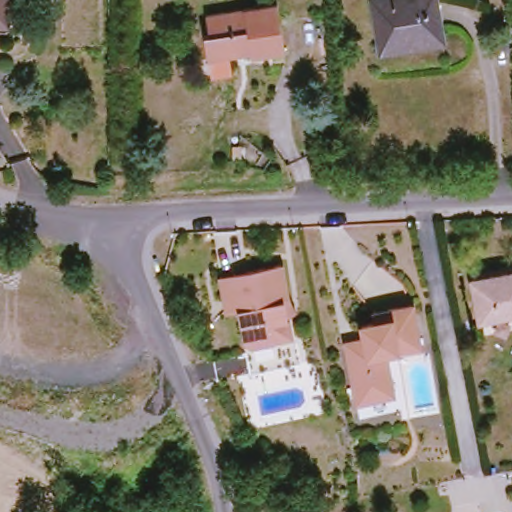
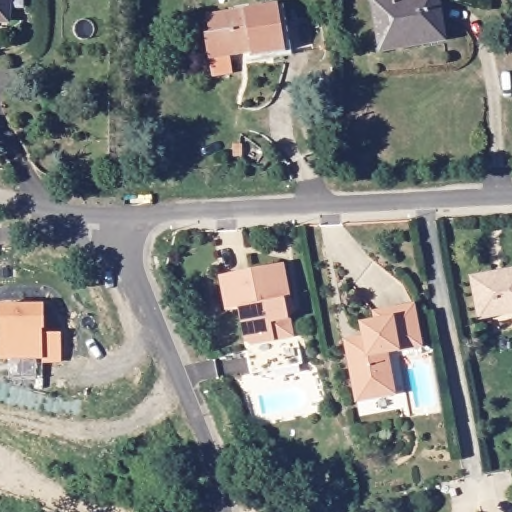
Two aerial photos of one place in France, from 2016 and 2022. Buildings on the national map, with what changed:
unchanged [(0,31),(0,0),(10,0),(9,31),(0,31)]
unchanged [(427,46),(426,39),(380,45),(373,1),(376,0),(437,0),(443,44),(427,46)]
unchanged [(290,56),(255,62),(255,58),(212,64),(210,40),(214,39),(212,21),(282,10),(290,56)]
unchanged [(288,299),(285,303),(290,332),(273,335),(275,341),(252,346),(244,341),(237,312),(228,313),(221,278),(282,265),(288,299)]
unchanged [(480,318),(472,278),(512,270),(512,312),(480,318)]
new [(60,334),(61,365),(43,365),(43,359),(0,359),(0,304),(43,304),(42,334),(60,334)]
unchanged [(389,396),(357,402),(345,350),(342,330),(361,326),(375,323),(375,315),(408,307),(417,348),(386,354),(390,375),(394,395),(389,396)]

